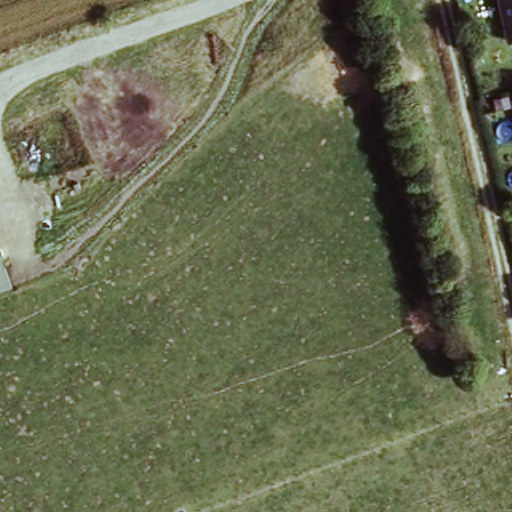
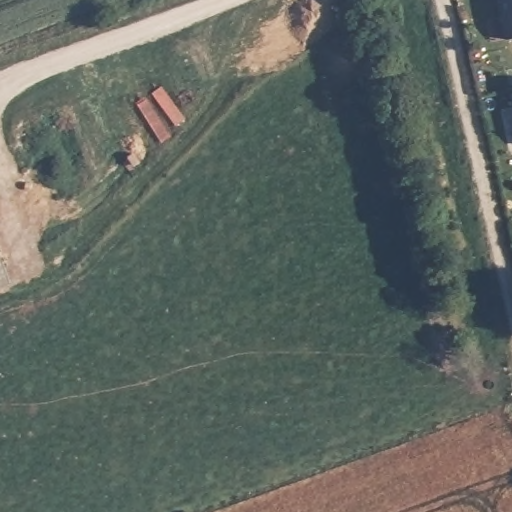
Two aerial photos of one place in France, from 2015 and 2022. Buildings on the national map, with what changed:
unchanged [(505,38),(502,18),(511,15),(508,0),(512,0),(512,37),(505,38)]
unchanged [(0,283),(0,252),(10,280),(0,283)]

